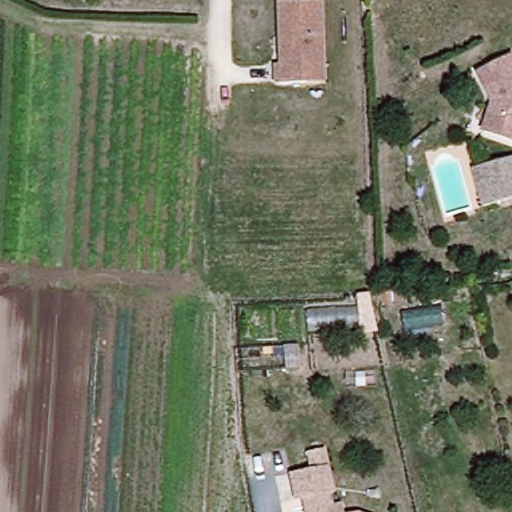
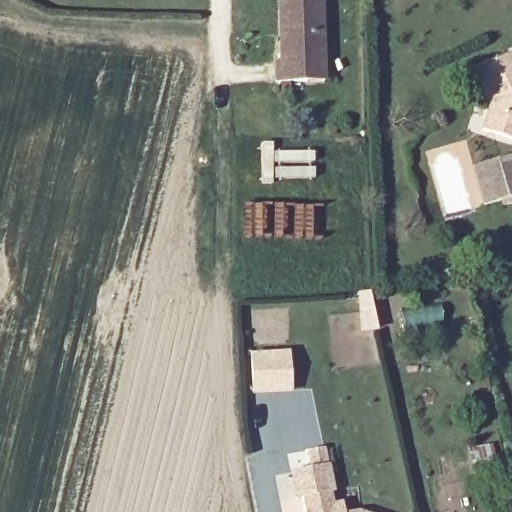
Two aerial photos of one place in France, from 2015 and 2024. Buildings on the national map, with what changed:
unchanged [(307,81),(276,82),(275,63),(281,63),(279,0),(322,0),(323,63),(323,81),(307,81)]
unchanged [(512,57),(512,139),(485,129),(493,104),(477,70),(511,54),(512,57)]
unchanged [(486,209),(482,195),(475,170),(492,165),(512,160),(512,202),(486,209)]
new [(290,350),(293,391),(252,395),(249,353),(290,350)]
unchanged [(292,494),(288,471),(325,465),(329,487),(323,489),(327,502),(337,500),(340,512),(302,512),(299,492),(292,494)]
unchanged [(357,512),(352,512),(356,511),(357,512)]

